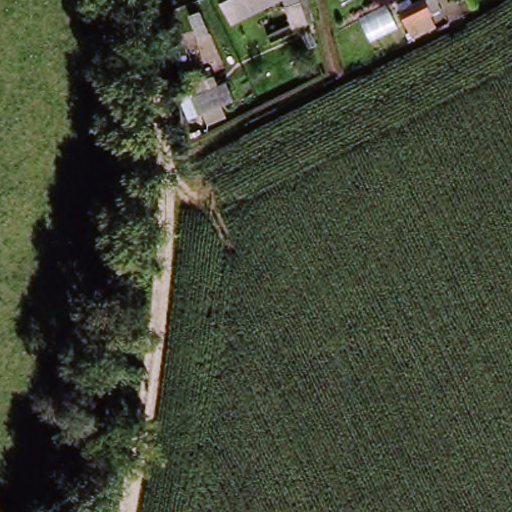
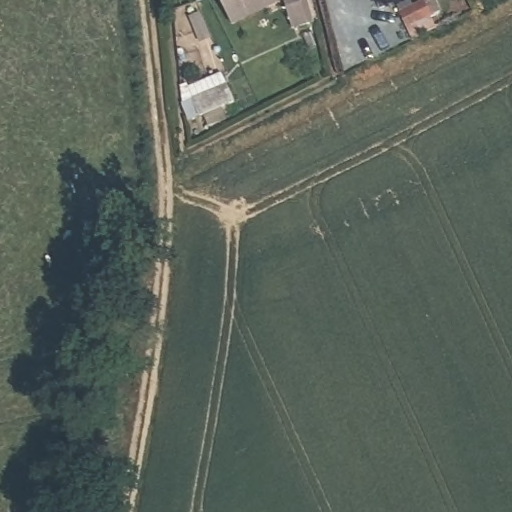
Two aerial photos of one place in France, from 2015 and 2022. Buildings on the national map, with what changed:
unchanged [(289,36),(279,6),(230,27),(219,0),(304,0),(313,28),(289,36)]
unchanged [(392,10),(416,0),(426,0),(439,30),(412,44),(392,10)]
unchanged [(194,125),(187,106),(229,89),(236,109),(194,125)]

